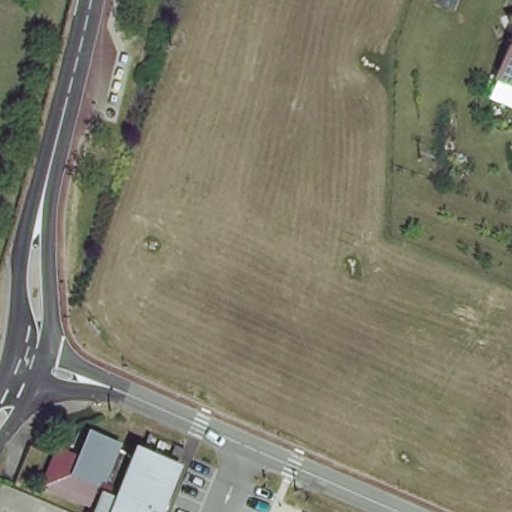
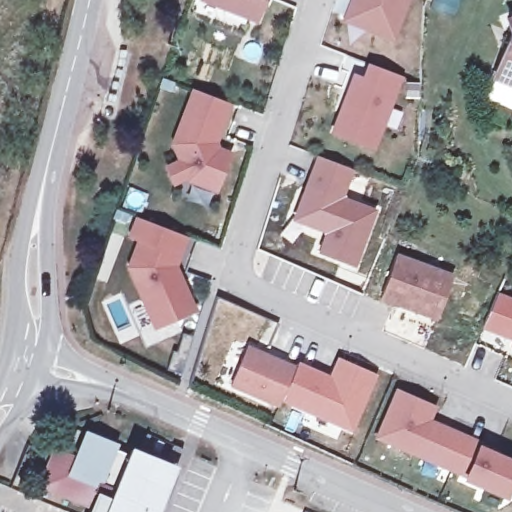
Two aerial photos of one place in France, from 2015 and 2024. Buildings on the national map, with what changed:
new [(203,0),(267,0),(258,22),(203,0)]
new [(411,0),(409,6),(392,42),(339,21),(346,0),(411,0)]
unchanged [(497,70),(512,36),(507,22),(512,20),(512,88),(492,80),(497,70)]
new [(374,152),(330,132),(353,75),(362,79),(367,65),(403,78),(374,152)]
new [(216,192),(187,181),(172,186),(164,166),(176,161),(170,146),(191,90),(232,105),(218,145),(220,148),(232,152),(216,192)]
new [(317,157),(353,172),(342,200),(376,213),(354,267),(318,253),(328,228),(295,215),(317,157)]
new [(178,267),(197,310),(154,331),(126,270),(136,241),(128,238),(135,217),(189,239),(178,267)]
new [(378,297),(395,254),(448,274),(433,317),(378,297)]
new [(487,323),(501,292),(512,297),(512,335),(487,323)]
new [(277,407),(229,385),(247,345),(295,365),(277,407)]
new [(464,473),(375,435),(395,391),(423,403),(417,416),(479,445),(464,473)]
unchanged [(107,492),(94,486),(87,502),(56,488),(62,473),(79,431),(109,444),(107,449),(121,455),(123,448),(176,471),(158,512),(98,512),(107,492)]
unchanged [(184,453),(177,466),(166,460),(173,447),(184,453)]

